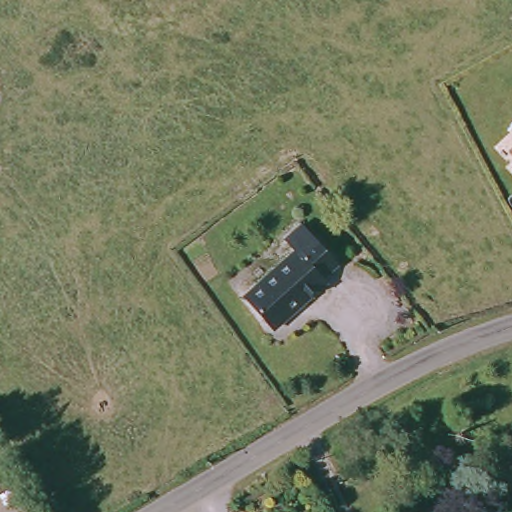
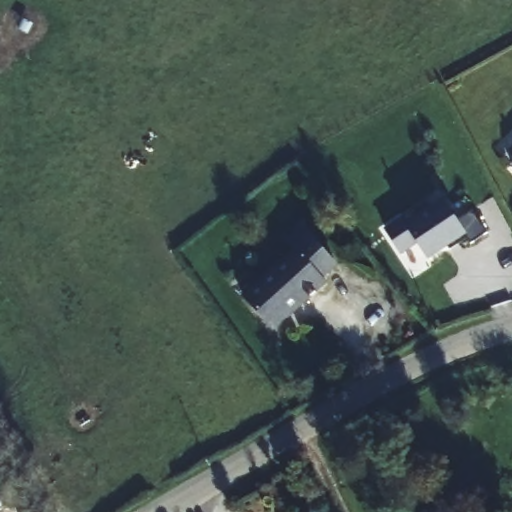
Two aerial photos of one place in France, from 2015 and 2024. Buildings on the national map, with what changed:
new [(471,243),(465,234),(427,258),(418,243),(399,253),(385,228),(405,217),(408,220),(446,199),(458,219),(473,210),(487,233),(471,243)]
unchanged [(320,275),(327,281),(276,325),(268,325),(241,293),(293,247),(282,235),(299,219),(336,260),(320,275)]

